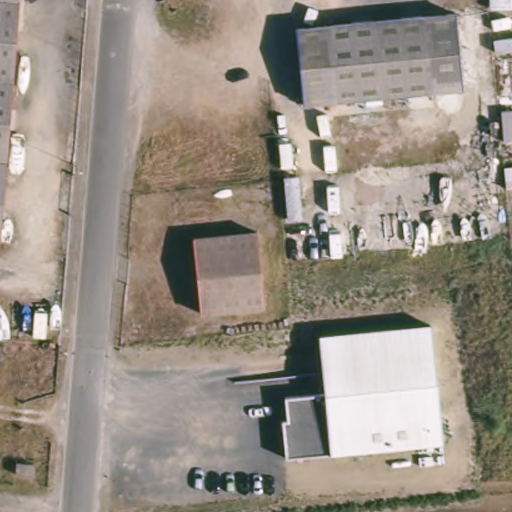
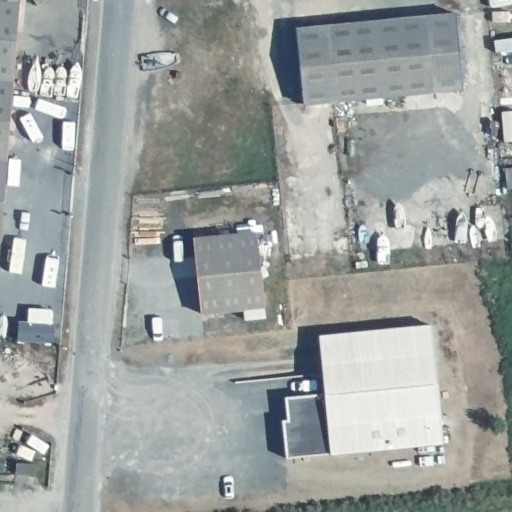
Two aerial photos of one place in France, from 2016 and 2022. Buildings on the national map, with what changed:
unchanged [(28,0),(16,236),(0,235),(0,0),(28,0)]
unchanged [(456,11),(464,90),(305,104),(298,25),(456,11)]
unchanged [(271,221),(280,297),(214,304),(206,227),(271,221)]
unchanged [(282,456),(279,430),(284,429),(281,396),(321,391),(315,334),(387,327),(429,322),(430,326),(442,439),(282,456)]

